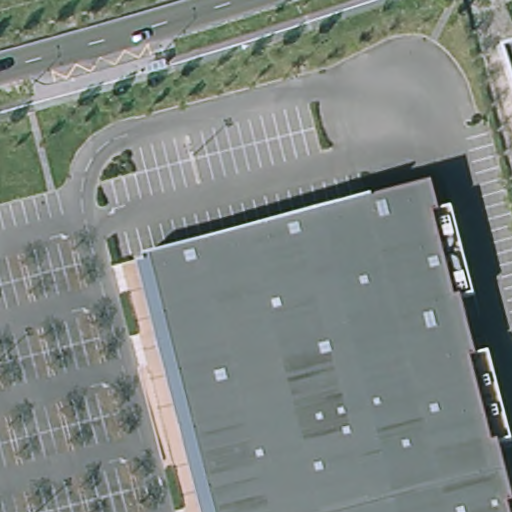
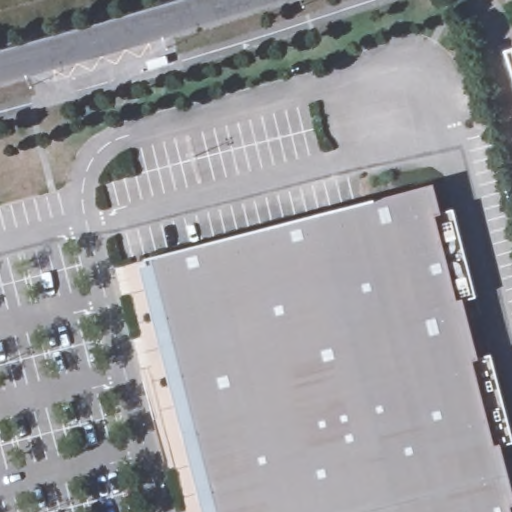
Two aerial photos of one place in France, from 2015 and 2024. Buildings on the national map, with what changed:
unchanged [(505,46),(512,44),(512,66),(505,47),(505,46)]
unchanged [(427,183),(434,211),(447,208),(469,296),(457,299),(472,356),(484,353),(495,444),(507,441),(512,460),(512,501),(510,502),(512,510),(512,512),(204,512),(138,258),(427,183)]

